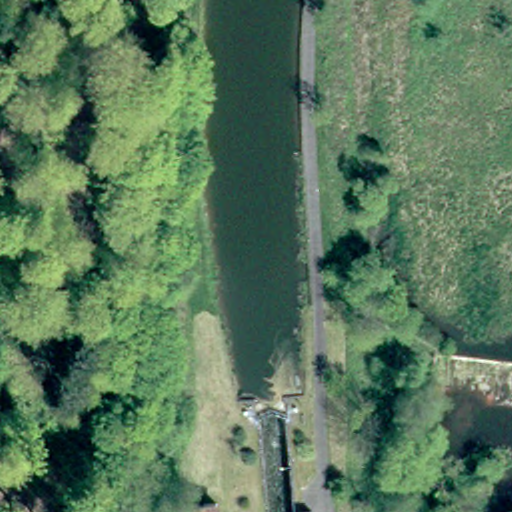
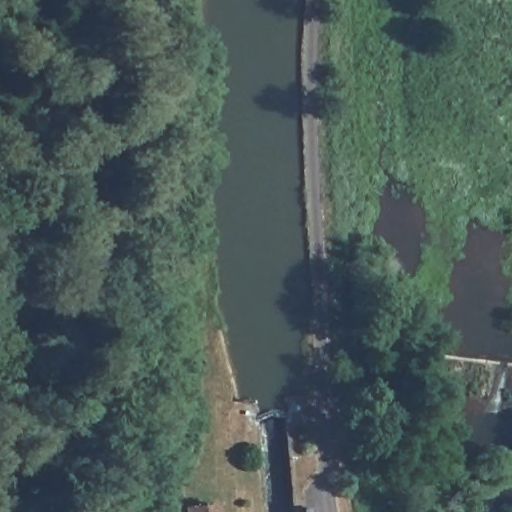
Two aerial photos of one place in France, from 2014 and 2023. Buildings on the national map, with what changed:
unchanged [(223,512),(176,512),(176,508),(222,506),(223,512)]

